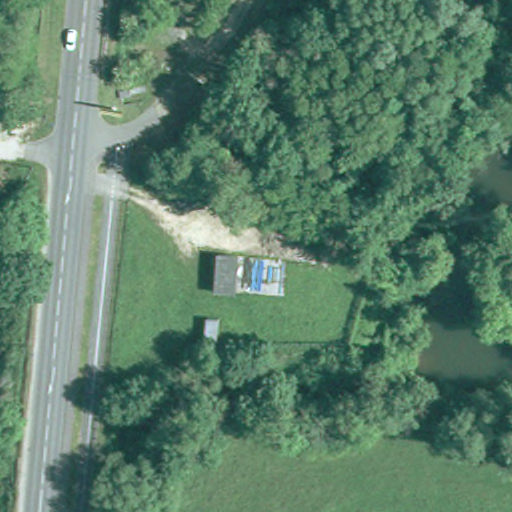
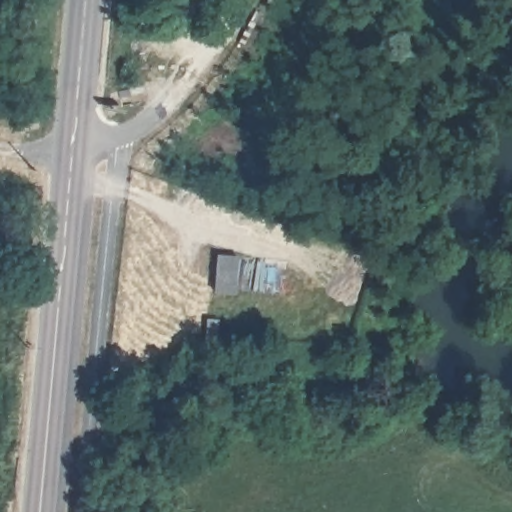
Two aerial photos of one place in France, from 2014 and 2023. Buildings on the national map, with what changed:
unchanged [(235,292),(215,290),(218,252),(238,254),(235,292)]

